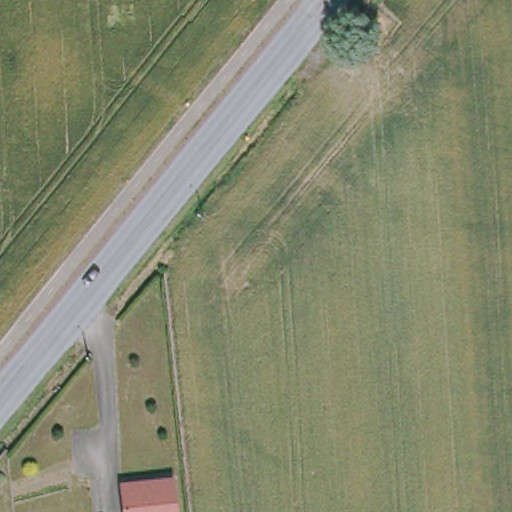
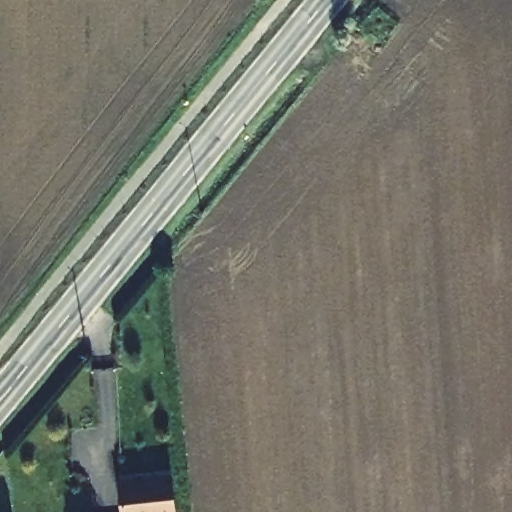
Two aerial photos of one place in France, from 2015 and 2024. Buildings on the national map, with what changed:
unchanged [(176,476),(179,512),(127,512),(124,481),(176,476)]

